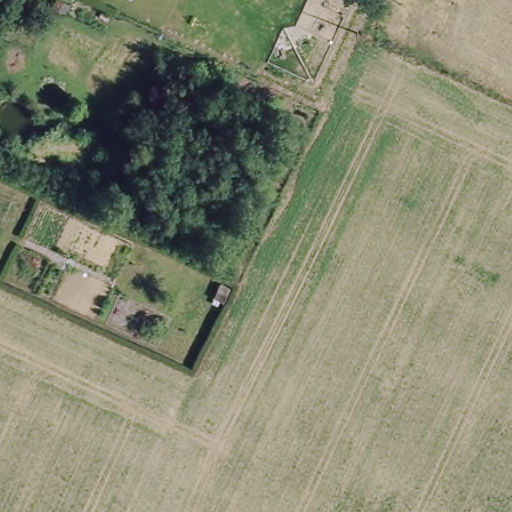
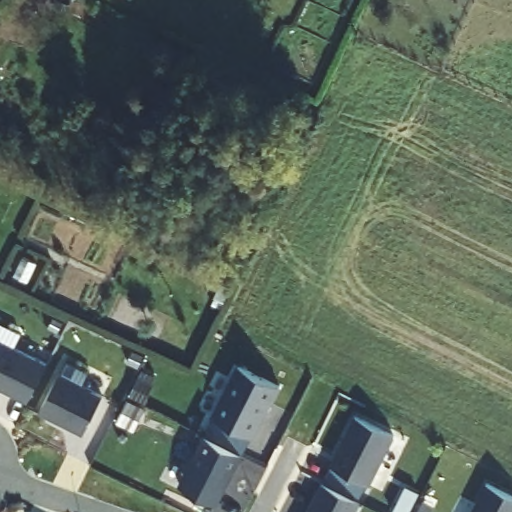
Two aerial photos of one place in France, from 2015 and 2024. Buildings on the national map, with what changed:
new [(0,388),(0,340),(47,363),(27,402),(0,388)]
new [(239,364),(280,385),(254,435),(252,435),(241,454),(205,436),(215,417),(212,415),(239,364)]
new [(59,373),(102,396),(82,435),(39,412),(59,373)]
new [(357,500),(322,482),(330,466),(355,416),(393,435),(367,485),(365,484),(357,500)]
new [(217,505),(178,485),(203,435),(242,455),(217,505)]
new [(487,481),(512,494),(512,512),(472,512),(487,481)]
new [(355,512),(307,512),(322,482),(360,502),(355,512)]

